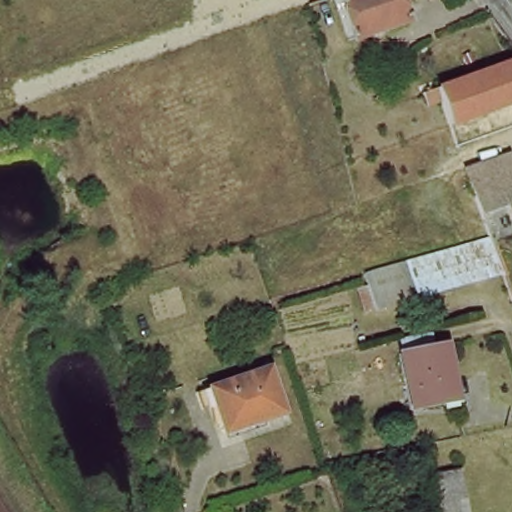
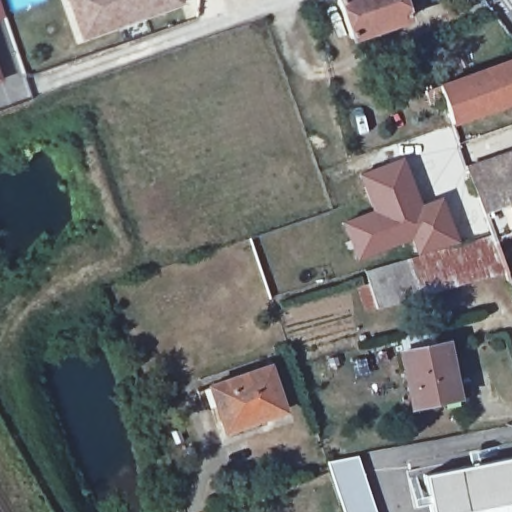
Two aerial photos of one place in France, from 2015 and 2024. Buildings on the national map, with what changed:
new [(69,0),(183,0),(185,4),(82,40),(69,0)]
unchanged [(356,36),(343,0),(407,0),(414,18),(356,36)]
unchanged [(512,105),(456,125),(442,86),(512,62),(512,105)]
unchanged [(4,80),(0,81),(0,68),(4,80)]
unchanged [(467,168),(512,153),(512,184),(477,194),(467,168)]
new [(399,157),(413,202),(439,194),(452,237),(413,248),(410,235),(352,253),(341,217),(370,208),(360,169),(399,157)]
unchanged [(512,184),(512,295),(504,272),(492,237),(477,194),(512,184)]
demolished [(504,272),(381,307),(368,270),(492,237),(504,272)]
unchanged [(418,409),(401,353),(448,342),(463,398),(418,409)]
unchanged [(223,434),(209,388),(272,367),(286,413),(223,434)]
new [(357,454),(377,512),(344,512),(328,464),(357,454)]
new [(512,512),(432,512),(425,476),(512,459),(512,512)]
demolished [(436,474),(465,471),(473,512),(443,512),(436,474)]

